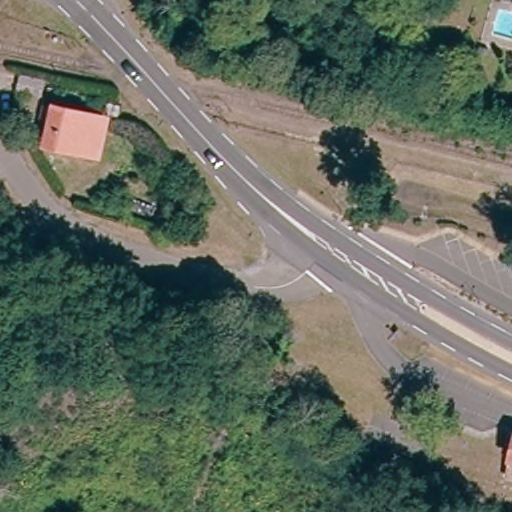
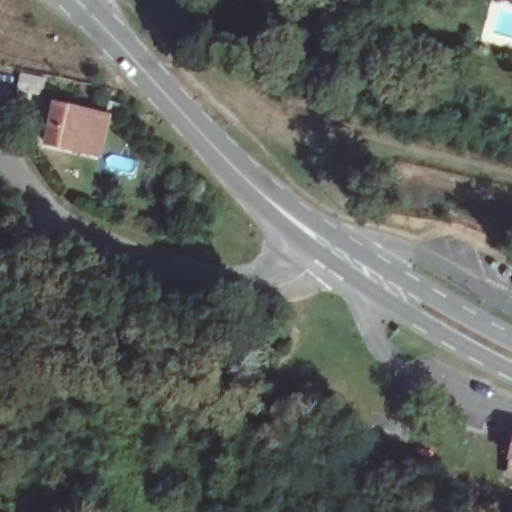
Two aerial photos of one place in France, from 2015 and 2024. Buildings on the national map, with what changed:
unchanged [(49,81),(46,94),(25,90),(29,76),(49,81)]
unchanged [(101,120),(92,159),(40,148),(49,108),(101,120)]
unchanged [(507,449),(512,429),(512,450),(507,449)]
unchanged [(511,456),(512,452),(512,456),(511,456)]
unchanged [(510,472),(512,462),(512,473),(510,472)]

